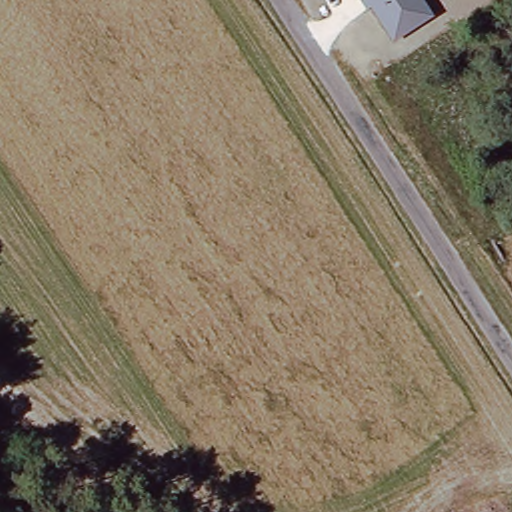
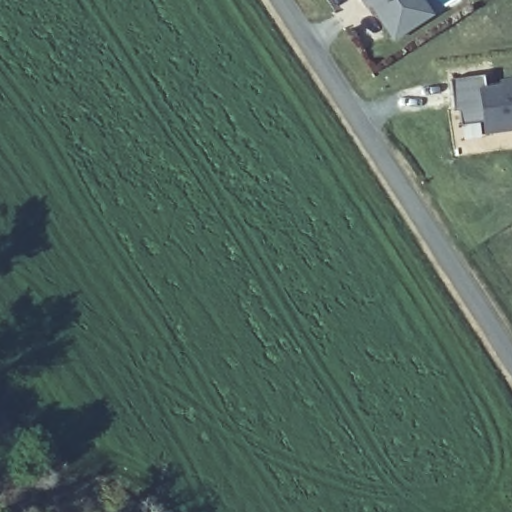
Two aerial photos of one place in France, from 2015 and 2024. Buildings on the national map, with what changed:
unchanged [(433,15),(391,42),(364,0),(423,0),(433,15)]
new [(462,124),(460,109),(455,109),(452,80),(483,76),(485,87),(500,84),(499,80),(512,78),(512,130),(484,134),(482,121),(462,124)]

